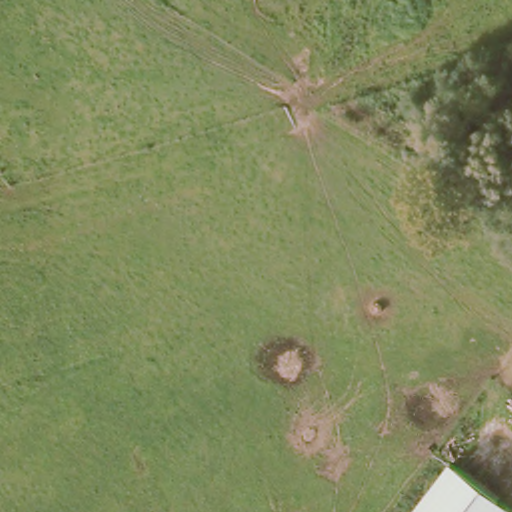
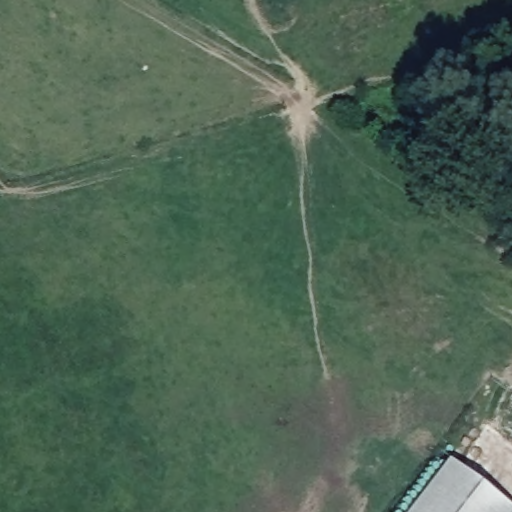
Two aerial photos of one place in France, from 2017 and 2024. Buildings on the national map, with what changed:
unchanged [(454,465),(502,502),(495,512),(418,512),(454,465)]
unchanged [(512,512),(495,512),(502,502),(512,509),(512,512)]

